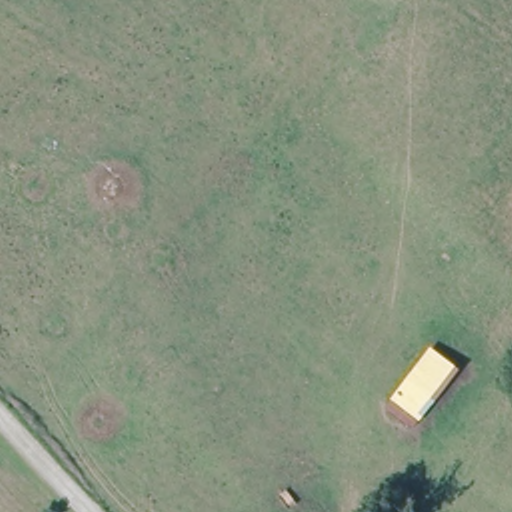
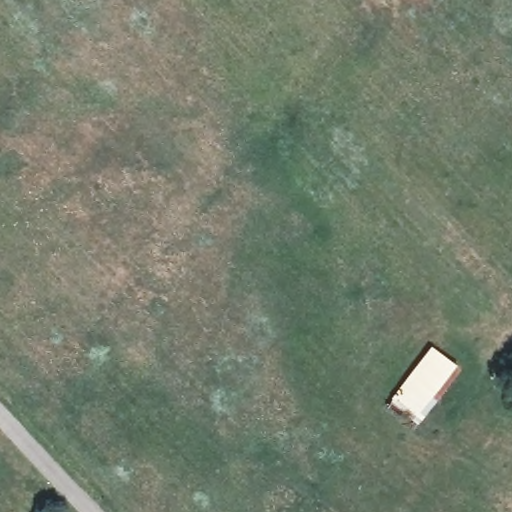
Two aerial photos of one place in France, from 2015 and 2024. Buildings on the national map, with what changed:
unchanged [(461,371),(414,428),(389,410),(392,398),(432,348),(461,371)]

